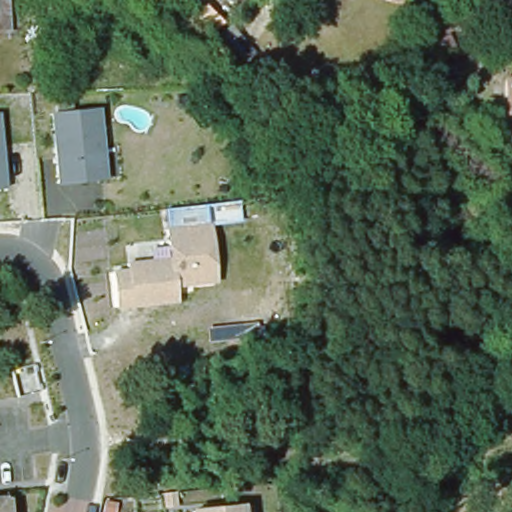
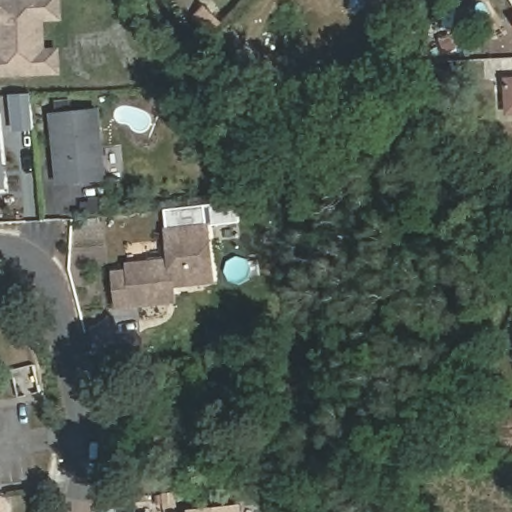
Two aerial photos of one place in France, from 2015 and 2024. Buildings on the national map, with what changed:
new [(0,10),(0,0),(5,0),(5,10),(0,10)]
new [(40,19),(40,32),(36,37),(36,50),(55,50),(56,71),(0,74),(0,10),(5,10),(5,0),(57,0),(58,18),(40,19)]
unchanged [(229,30),(252,56),(228,76),(206,50),(229,30)]
new [(41,50),(36,50),(36,37),(40,32),(41,50)]
unchanged [(505,83),(512,83),(512,114),(506,108),(505,83)]
new [(30,95),(33,130),(13,132),(9,95),(30,95)]
unchanged [(109,180),(55,185),(47,110),(45,100),(71,97),(72,108),(101,106),(109,180)]
unchanged [(8,187),(0,189),(0,113),(8,187)]
unchanged [(217,283),(175,289),(177,303),(114,310),(109,270),(126,270),(126,262),(167,260),(164,227),(209,222),(217,283)]
demolished [(18,397),(12,368),(36,364),(43,391),(18,397)]
unchanged [(2,498),(3,512),(0,512),(0,499),(2,498)]
unchanged [(192,511),(240,506),(240,507),(249,507),(249,512),(192,512),(192,511)]

